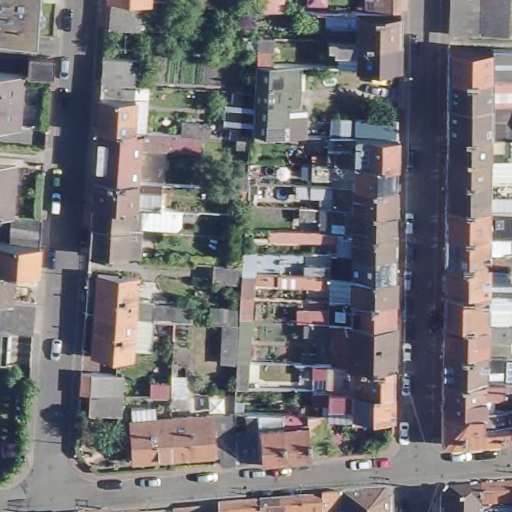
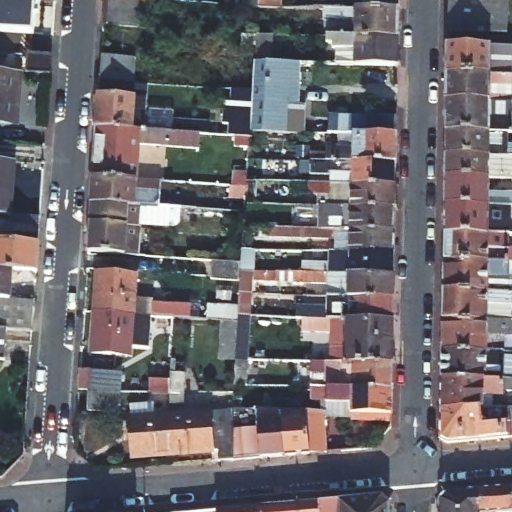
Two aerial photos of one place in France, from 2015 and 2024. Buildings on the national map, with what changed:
unchanged [(36,0),(34,33),(0,30),(0,0),(36,0)]
unchanged [(104,25),(105,0),(144,0),(142,27),(104,25)]
unchanged [(225,0),(225,5),(178,2),(178,0),(225,0)]
unchanged [(281,0),(281,6),(260,5),(260,0),(281,0)]
unchanged [(339,37),(339,23),(333,23),(333,8),(366,8),(366,0),(404,0),(404,9),(403,24),(403,39),(339,37)]
unchanged [(446,15),(446,1),(446,0),(506,0),(506,2),(505,16),(505,32),(476,31),(446,31),(446,15)]
unchanged [(293,82),(282,82),(280,101),(259,101),(253,100),(254,90),(256,61),(256,50),(257,38),(258,35),(274,35),(273,62),(294,62),(293,82)]
unchanged [(342,50),(339,50),(339,45),(333,45),(333,37),(339,37),(403,39),(403,65),(342,63),(342,50)]
unchanged [(491,61),(512,62),(512,74),(445,73),(445,44),(491,45),(491,61)]
unchanged [(32,53),(57,55),(55,75),(31,73),(32,53)]
unchanged [(100,81),(102,58),(135,60),(134,83),(150,84),(147,131),(100,127),(97,127),(98,110),(100,81)]
unchanged [(28,73),(24,122),(0,122),(0,71),(28,73)]
unchanged [(444,100),(445,73),(512,74),(512,101),(444,100)]
unchanged [(251,133),(250,138),(230,136),(230,126),(224,126),(225,101),(232,101),(233,89),(251,90),(254,90),(253,100),(251,120),(251,133)]
unchanged [(259,101),(280,101),(290,102),(289,133),(265,133),(265,121),(251,120),(253,100),(259,101)]
unchanged [(505,130),(444,129),(444,100),(512,101),(512,130),(505,130)]
unchanged [(93,176),(97,127),(100,127),(147,131),(150,131),(185,133),(186,121),(211,123),(211,135),(203,134),(202,146),(142,142),(140,179),(95,176),(93,176)]
unchanged [(505,144),(512,144),(512,152),(504,152),(443,151),(444,129),(505,130),(505,144)]
unchanged [(320,142),(336,143),(336,153),(343,153),(343,149),(358,149),(358,135),(401,135),(401,163),(319,161),(320,142)]
unchanged [(504,170),(512,170),(512,180),(492,180),(443,178),(443,151),(504,152),(504,170)]
unchanged [(21,162),(18,214),(14,214),(10,213),(0,213),(0,161),(21,162)]
unchanged [(358,175),(319,175),(319,161),(401,163),(401,184),(358,183),(358,175)]
unchanged [(93,176),(95,176),(140,179),(146,180),(165,181),(163,207),(142,205),(91,202),(93,176)]
unchanged [(492,180),(492,194),(512,195),(512,208),(507,207),(442,206),(443,178),(492,180)]
unchanged [(401,184),(400,193),(400,208),(393,208),(350,207),(350,197),(317,196),(317,183),(358,183),(401,184)]
unchanged [(230,198),(231,186),(247,187),(246,199),(230,198)]
unchanged [(144,256),(136,255),(90,252),(88,252),(91,202),(142,205),(163,207),(184,208),(183,218),(144,216),(141,248),(148,249),(148,256),(144,256)]
unchanged [(400,208),(400,230),(361,229),(357,229),(357,219),(345,218),(345,213),(337,213),(331,213),(331,206),(337,206),(349,207),(350,207),(393,208),(400,208)]
unchanged [(507,207),(507,230),(512,230),(512,235),(508,235),(442,233),(442,206),(507,207)]
unchanged [(12,236),(13,219),(45,221),(43,238),(12,236)]
unchanged [(248,389),(236,388),(237,361),(220,359),(223,321),(206,320),(208,303),(245,306),(246,294),(246,281),(220,279),(221,261),(248,263),(247,271),(321,272),(321,266),(340,266),(340,273),(357,273),(358,252),(342,252),(342,239),(283,238),(283,227),(317,228),(357,229),(361,229),(400,230),(399,252),(399,274),(399,284),(399,298),(339,296),(339,285),(260,283),(259,294),(258,314),(256,359),(250,359),(248,389)]
unchanged [(508,250),(512,251),(512,262),(509,262),(441,261),(442,233),(508,235),(508,250)]
unchanged [(16,240),(43,241),(42,262),(41,273),(15,271),(0,271),(0,239),(16,240)]
unchanged [(509,262),(509,293),(441,293),(441,261),(509,262)]
unchanged [(2,329),(5,301),(0,301),(0,271),(15,271),(13,301),(39,303),(37,320),(37,331),(12,330),(11,345),(11,362),(0,361),(0,329),(2,329)]
unchanged [(127,315),(90,312),(93,272),(131,274),(128,315),(127,315)]
unchanged [(509,293),(512,293),(512,323),(440,322),(441,293),(509,293)]
unchanged [(317,306),(339,306),(339,296),(399,298),(398,318),(317,316),(317,306)]
unchanged [(146,333),(147,316),(148,302),(171,303),(170,318),(169,334),(146,333)]
unchanged [(127,315),(128,315),(143,316),(140,354),(87,353),(90,312),(127,315)]
unchanged [(353,342),(340,342),(340,325),(312,325),(313,316),(317,316),(398,318),(398,362),(353,361),(353,342)]
unchanged [(505,337),(505,353),(440,352),(440,322),(512,323),(512,337),(505,337)]
unchanged [(440,352),(505,353),(505,376),(510,376),(510,382),(505,382),(439,382),(440,352)]
unchanged [(143,394),(145,378),(146,361),(167,362),(166,373),(182,374),(180,405),(164,404),(164,395),(143,394)]
unchanged [(347,371),(339,371),(339,365),(332,365),(332,361),(353,361),(398,362),(397,388),(347,387),(347,371)]
unchanged [(118,392),(85,390),(73,389),(75,368),(135,371),(134,393),(118,392)]
unchanged [(505,412),(439,412),(439,382),(505,382),(505,412)]
unchanged [(439,439),(439,412),(505,412),(505,382),(510,382),(512,382),(512,438),(445,444),(439,439)]
unchanged [(362,402),(322,401),(321,386),(347,387),(397,388),(397,414),(394,414),(363,413),(362,402)]
unchanged [(118,393),(117,412),(84,410),(85,392),(118,393)]
unchanged [(129,457),(125,418),(128,418),(127,406),(152,404),(152,416),(163,415),(166,454),(129,457)]
unchanged [(322,411),(322,451),(304,453),(279,455),(226,459),(228,431),(244,429),(244,408),(279,410),(299,411),(304,411),(322,411)]
unchanged [(229,409),(229,410),(228,431),(226,459),(211,461),(210,450),(166,454),(163,415),(229,409)]
unchanged [(477,490),(508,487),(511,512),(479,512),(477,490)]
unchanged [(512,487),(512,512),(511,512),(508,487),(512,487)]
unchanged [(479,512),(439,512),(440,499),(446,492),(477,490),(479,512)]
unchanged [(299,503),(380,497),(389,503),(388,512),(298,512),(299,503)]
unchanged [(259,507),(299,503),(298,512),(259,512),(259,507)]
unchanged [(217,510),(259,507),(259,512),(216,512),(217,510)]
unchanged [(217,510),(216,512),(194,512),(217,510)]

